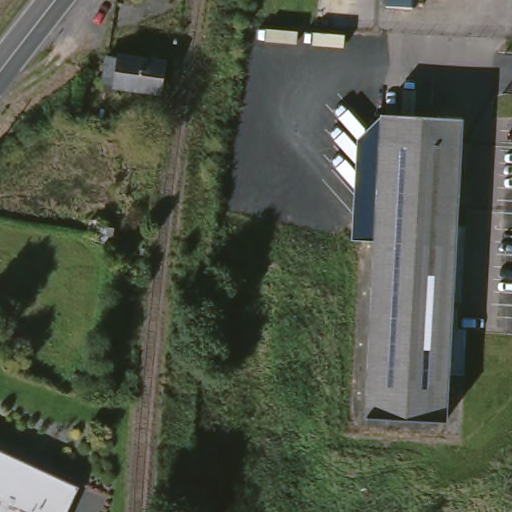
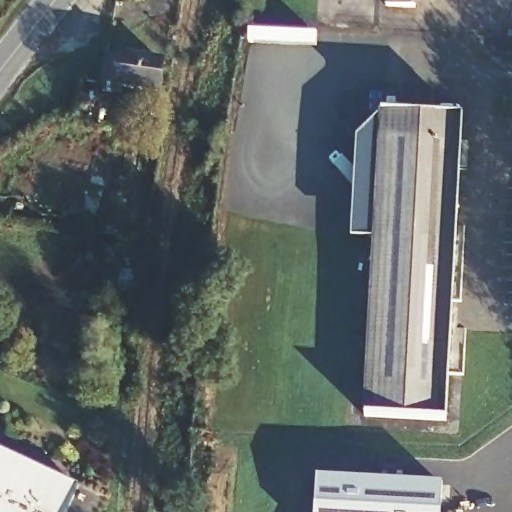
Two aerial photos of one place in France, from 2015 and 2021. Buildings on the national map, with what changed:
unchanged [(421,8),(393,6),(393,0),(422,0),(421,8)]
unchanged [(172,63),(167,87),(164,87),(111,79),(116,54),(169,63),(172,63)]
unchanged [(387,113),(441,116),(439,143),(385,140),(387,113)]
unchanged [(466,118),(450,422),(370,417),(385,140),(439,143),(441,116),(466,118)]
unchanged [(67,512),(0,512),(0,451),(79,487),(67,512)]
new [(440,485),(439,512),(313,512),(315,478),(440,485)]

